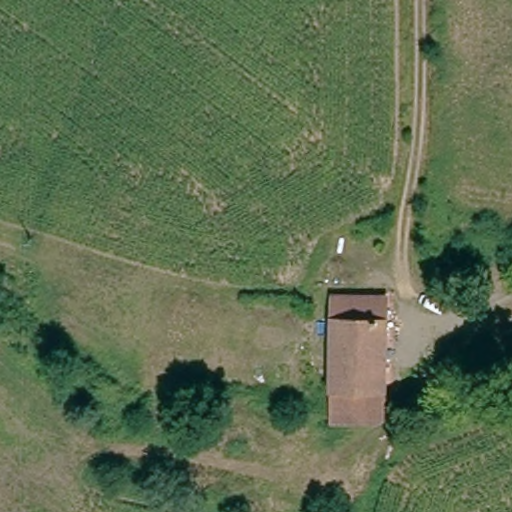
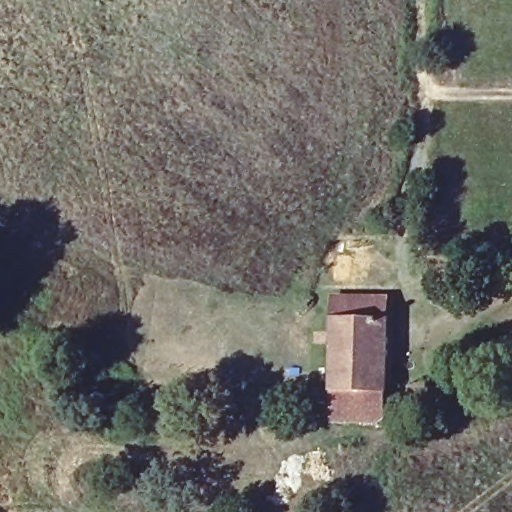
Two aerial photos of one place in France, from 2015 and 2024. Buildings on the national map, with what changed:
unchanged [(385,383),(333,380),(333,297),(386,301),(385,383)]
unchanged [(385,383),(385,406),(378,422),(332,422),(333,389),(333,380),(385,383)]

